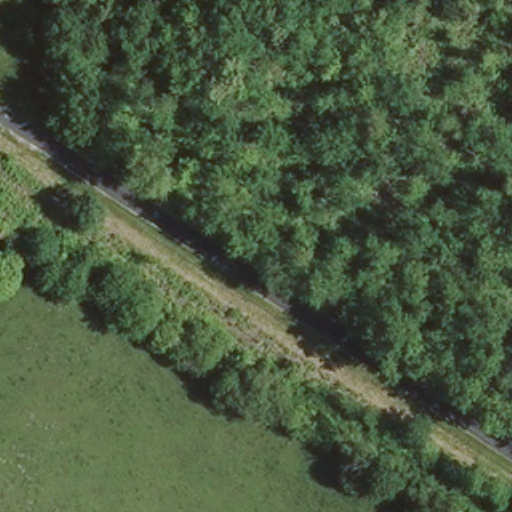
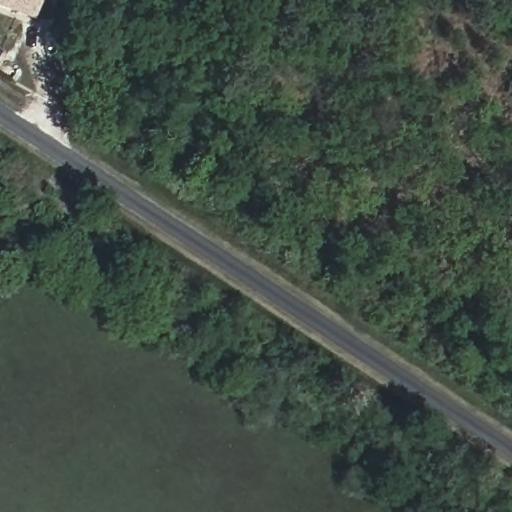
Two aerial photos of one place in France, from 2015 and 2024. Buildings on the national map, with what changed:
new [(33,17),(0,6),(0,0),(38,0),(33,17)]

